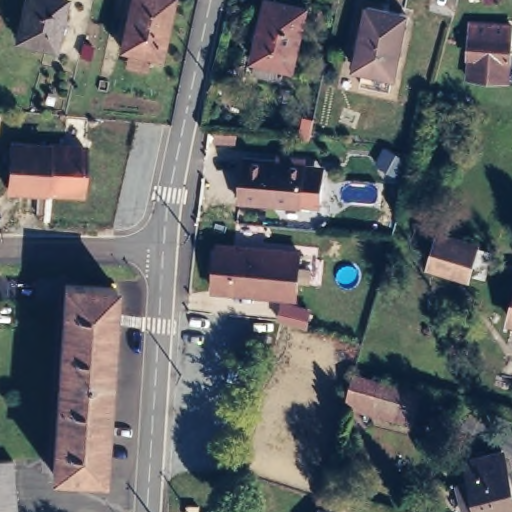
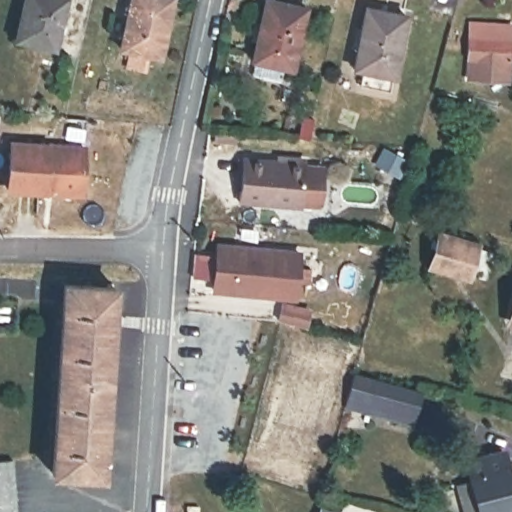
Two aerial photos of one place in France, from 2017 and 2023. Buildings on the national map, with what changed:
unchanged [(7,41),(15,0),(52,0),(43,48),(7,41)]
unchanged [(147,61),(143,75),(122,72),(124,57),(114,54),(126,0),(166,0),(153,62),(147,61)]
unchanged [(241,78),(244,67),(242,65),(257,2),(296,11),(282,72),(273,70),(269,86),(241,78)]
unchanged [(382,80),(346,72),(357,11),(394,21),(382,80)]
unchanged [(459,63),(460,44),(461,31),(503,34),(502,48),(501,67),(459,63)]
unchanged [(302,148),(307,129),(319,129),(314,149),(302,148)]
unchanged [(11,188),(15,143),(88,149),(83,194),(11,188)]
unchanged [(239,200),(244,158),(305,165),(301,207),(239,200)]
unchanged [(403,189),(385,177),(394,163),(412,173),(403,189)]
unchanged [(477,286),(440,274),(447,246),(485,257),(477,286)]
unchanged [(297,302),(217,291),(222,248),(301,258),(297,302)]
unchanged [(512,278),(512,325),(499,321),(512,278)]
unchanged [(103,294),(88,475),(38,471),(55,288),(103,294)]
unchanged [(353,379),(417,396),(408,425),(345,408),(353,379)]
unchanged [(510,510),(500,512),(459,512),(454,484),(463,483),(460,465),(497,457),(510,510)]
unchanged [(12,460),(14,512),(0,512),(0,460),(12,460)]
unchanged [(322,511),(325,512),(322,512),(322,511)]

